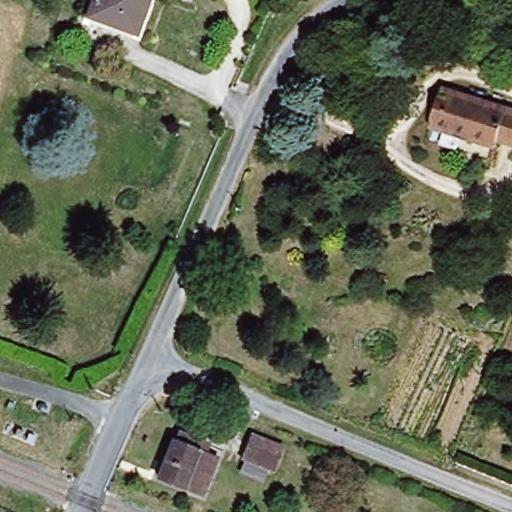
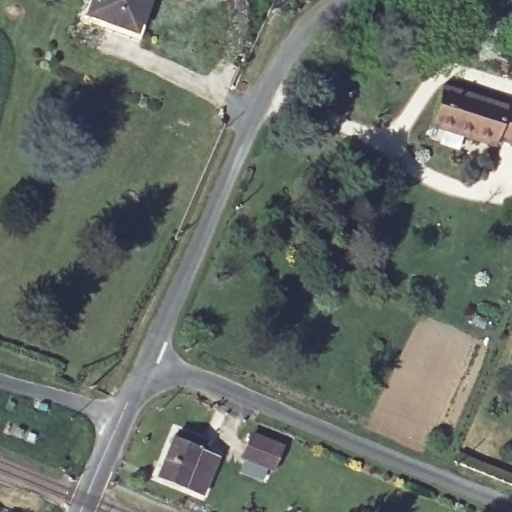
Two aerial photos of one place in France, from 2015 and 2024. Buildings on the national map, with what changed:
unchanged [(93,19),(100,0),(152,0),(139,35),(93,19)]
unchanged [(450,89),(512,108),(512,144),(505,141),(500,149),(436,129),(450,89)]
unchanged [(221,459),(206,497),(187,489),(161,478),(176,441),(177,441),(179,437),(180,436),(210,448),(209,454),(221,459)]
unchanged [(273,472),(245,461),(254,439),(281,449),(273,472)]

